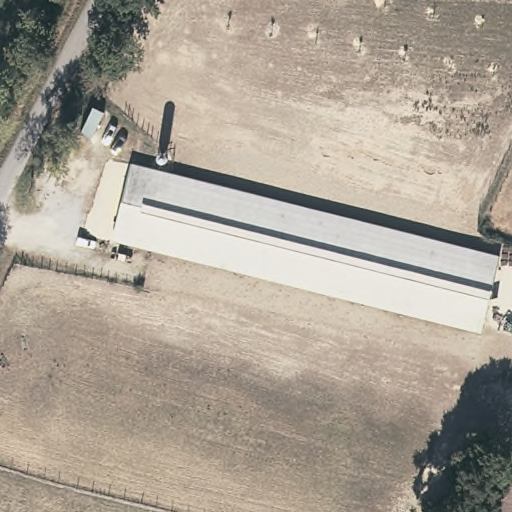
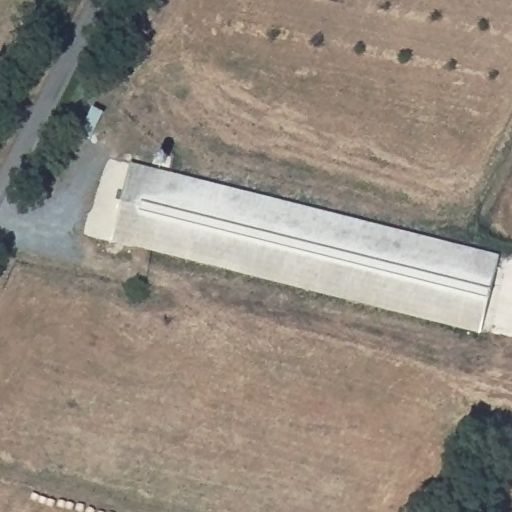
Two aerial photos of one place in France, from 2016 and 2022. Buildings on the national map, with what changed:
unchanged [(480,333),(111,242),(133,165),(499,255),(480,333)]

